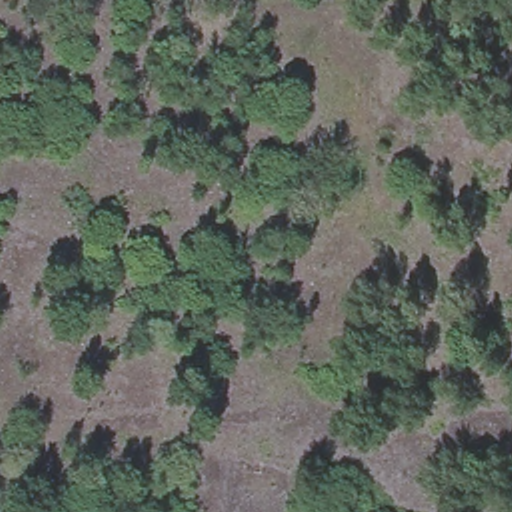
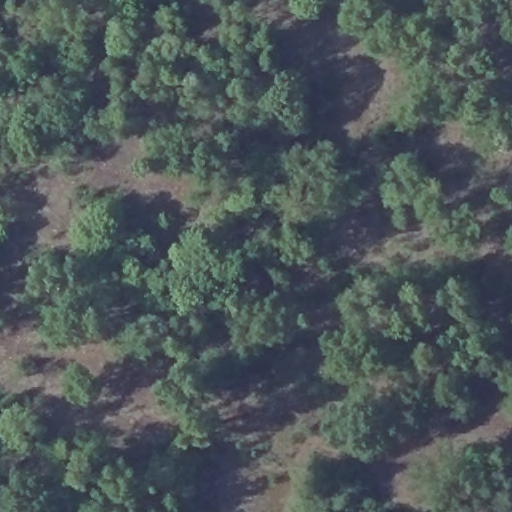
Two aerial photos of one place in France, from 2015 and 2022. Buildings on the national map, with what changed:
[]

